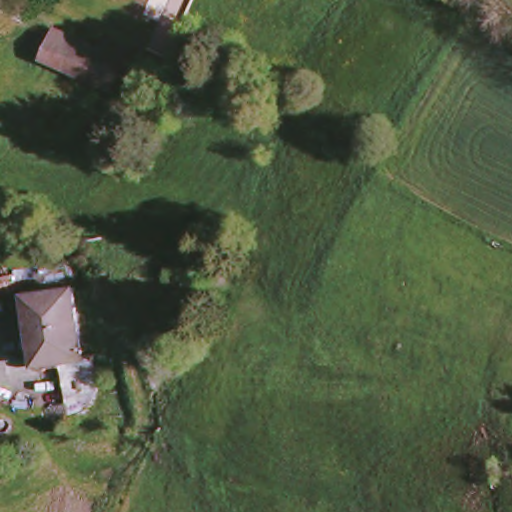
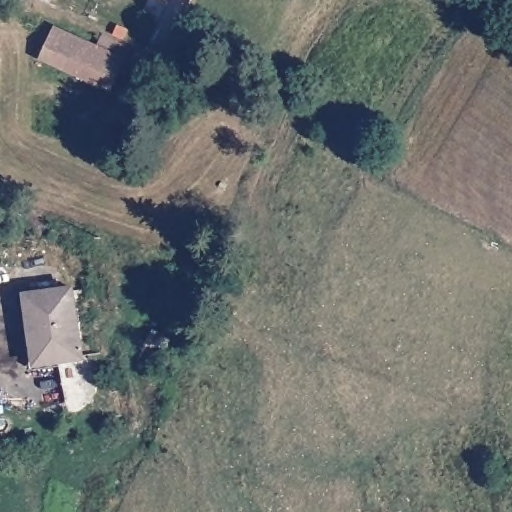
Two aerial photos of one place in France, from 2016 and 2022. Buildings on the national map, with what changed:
unchanged [(128,62),(117,87),(53,61),(66,33),(128,62)]
unchanged [(75,287),(85,357),(85,358),(36,368),(28,290),(75,287)]
unchanged [(57,373),(39,375),(36,368),(85,358),(85,357),(92,357),(93,372),(89,372),(93,398),(88,406),(65,411),(57,373)]

